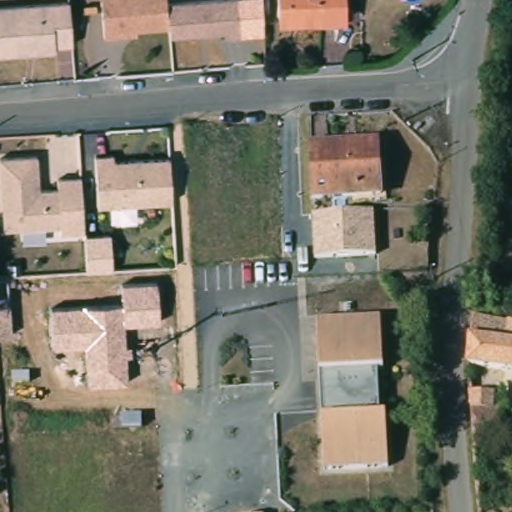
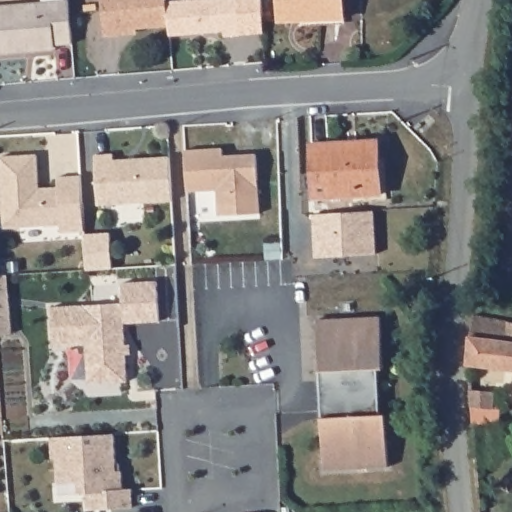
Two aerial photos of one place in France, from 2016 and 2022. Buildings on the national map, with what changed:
unchanged [(42,52),(2,55),(0,55),(0,5),(82,0),(85,45),(68,46),(68,51),(42,52)]
unchanged [(124,33),(125,38),(106,39),(103,0),(170,0),(170,4),(172,29),(124,33)]
unchanged [(170,4),(228,0),(234,0),(237,38),(225,39),(224,34),(174,38),(172,29),(170,4)]
unchanged [(280,0),(345,0),(345,21),(280,23),(280,0)]
unchanged [(378,143),(381,198),(315,203),(311,148),(378,143)]
new [(222,158),(235,158),(255,157),(258,217),(217,219),(216,193),(186,195),(184,154),(222,151),(222,158)]
unchanged [(36,153),(37,188),(57,187),(57,175),(80,172),(84,229),(60,230),(60,223),(4,227),(0,180),(0,156),(36,153)]
unchanged [(96,208),(94,156),(114,155),(115,161),(169,160),(172,204),(96,208)]
unchanged [(311,216),(373,213),(375,257),(313,259),(311,216)]
new [(109,236),(110,271),(85,272),(84,237),(109,236)]
new [(7,277),(11,336),(0,337),(0,278),(7,277)]
unchanged [(85,345),(52,348),(50,308),(123,302),(122,283),(156,280),(157,323),(124,325),(127,380),(87,387),(85,345)]
unchanged [(473,314),(480,316),(512,320),(512,369),(469,364),(473,314)]
unchanged [(380,317),(383,370),(387,415),(390,468),(325,473),(323,419),(320,373),(319,322),(380,317)]
unchanged [(510,391),(509,407),(509,420),(497,419),(493,443),(481,443),(481,388),(510,391)]
new [(113,436),(115,473),(120,472),(122,491),(131,490),(132,508),(86,512),(85,496),(78,496),(77,483),(56,485),(55,460),(51,460),(50,439),(113,436)]

